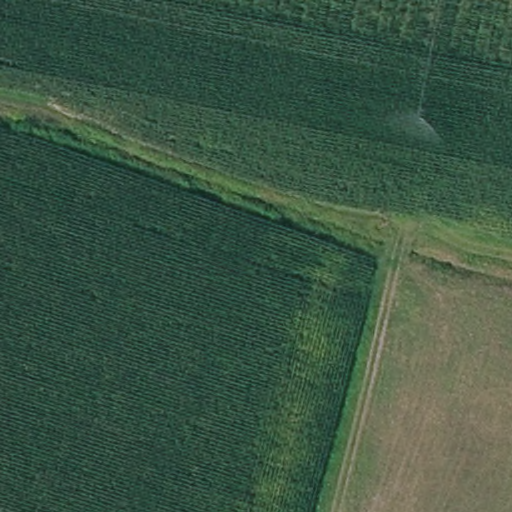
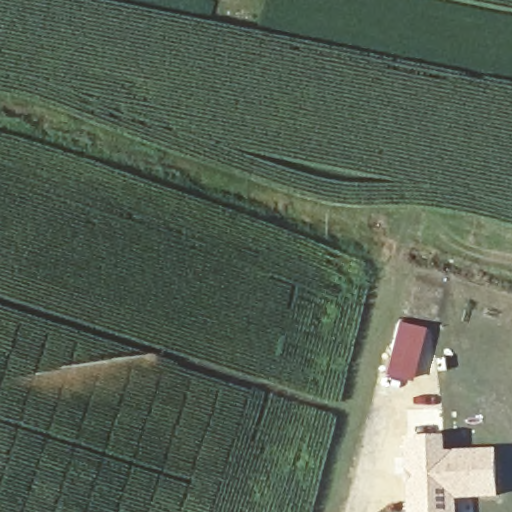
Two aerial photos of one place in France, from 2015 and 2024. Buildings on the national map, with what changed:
new [(447,452),(497,450),(500,498),(458,500),(459,512),(410,512),(406,438),(447,437),(447,452)]

